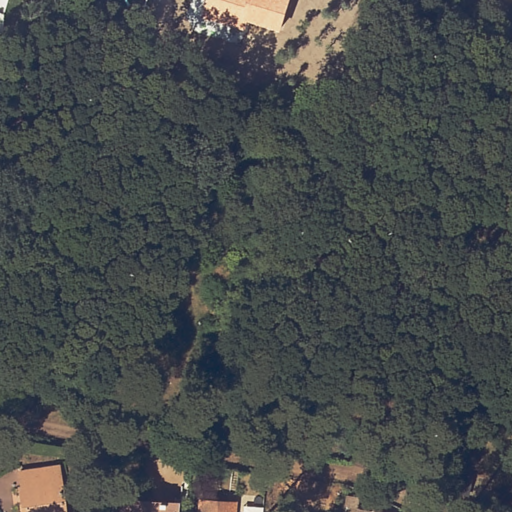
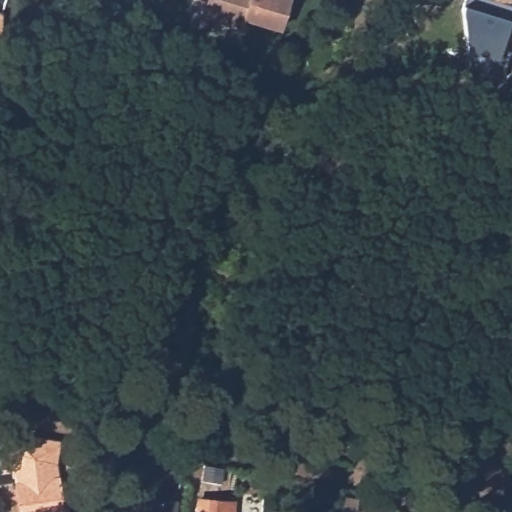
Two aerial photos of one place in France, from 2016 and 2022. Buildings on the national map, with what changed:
unchanged [(278,32),(247,21),(244,28),(204,15),(208,0),(290,0),(278,32)]
new [(467,48),(460,8),(462,4),(463,0),(500,0),(512,3),(512,17),(511,19),(503,47),(512,49),(512,52),(507,80),(471,74),(467,48)]
unchanged [(500,0),(512,0),(512,3),(500,0)]
new [(4,49),(0,48),(0,11),(4,12),(4,49)]
unchanged [(24,512),(17,469),(55,463),(62,512),(24,512)]
unchanged [(227,497),(226,512),(192,512),(194,494),(227,497)]
unchanged [(358,499),(357,510),(365,512),(342,512),(344,497),(358,499)]
unchanged [(127,512),(128,507),(179,511),(178,512),(127,512)]
unchanged [(376,512),(371,512),(372,510),(376,512)]

